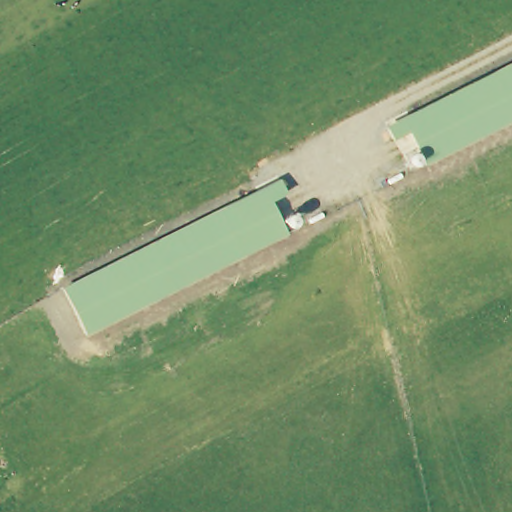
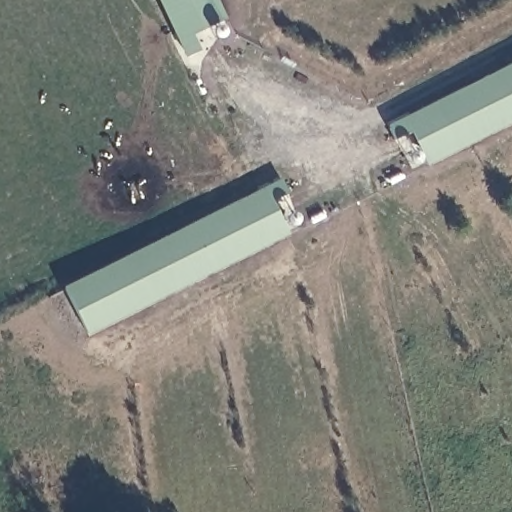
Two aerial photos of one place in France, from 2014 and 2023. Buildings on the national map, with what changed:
new [(185,55),(159,0),(219,0),(227,17),(192,33),(200,49),(185,55)]
unchanged [(422,158),(411,163),(406,151),(416,146),(408,131),(394,139),(387,125),(512,62),(512,121),(425,164),(422,158)]
unchanged [(287,192),(272,199),(279,214),(292,207),(298,220),(284,225),(288,233),(86,332),(61,287),(280,178),(287,192)]

